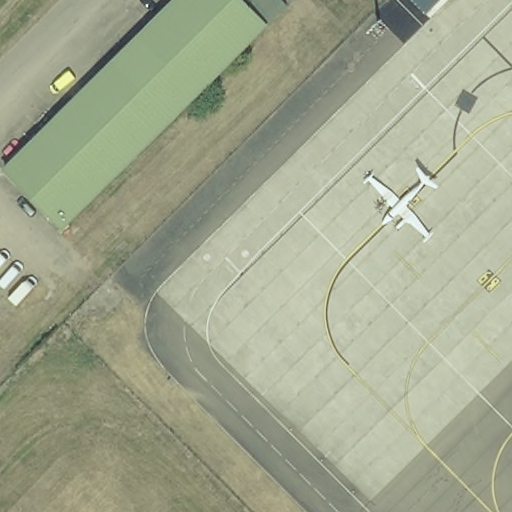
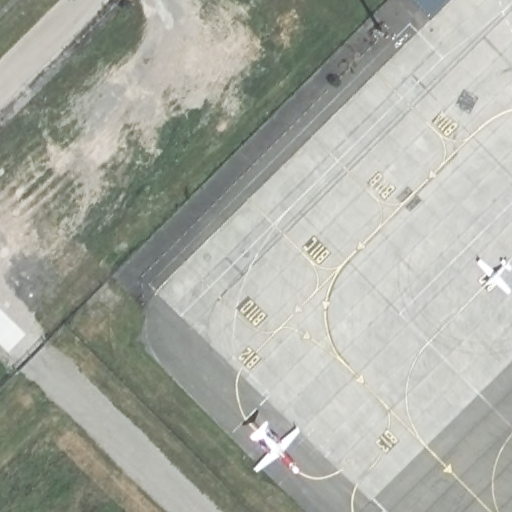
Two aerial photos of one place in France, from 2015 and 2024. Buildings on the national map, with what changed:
demolished [(69,227),(6,171),(173,0),(247,0),(271,21),(69,227)]
new [(412,0),(443,0),(427,16),(412,0)]

